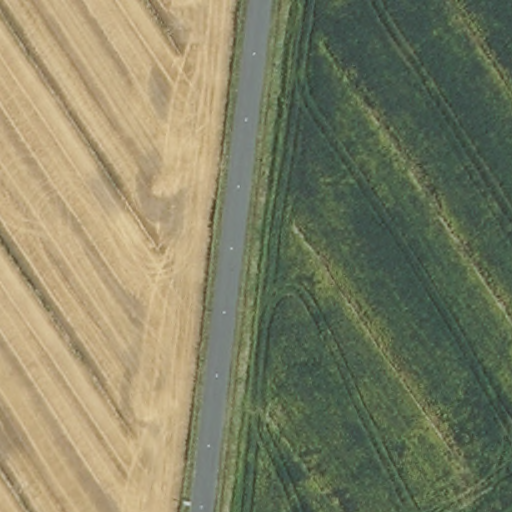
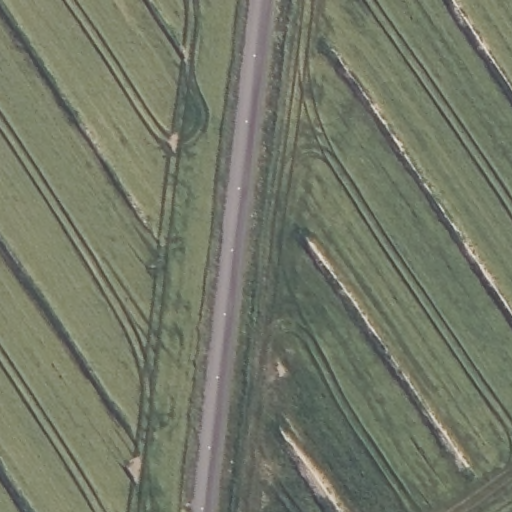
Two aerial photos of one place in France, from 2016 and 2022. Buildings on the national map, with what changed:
[]

